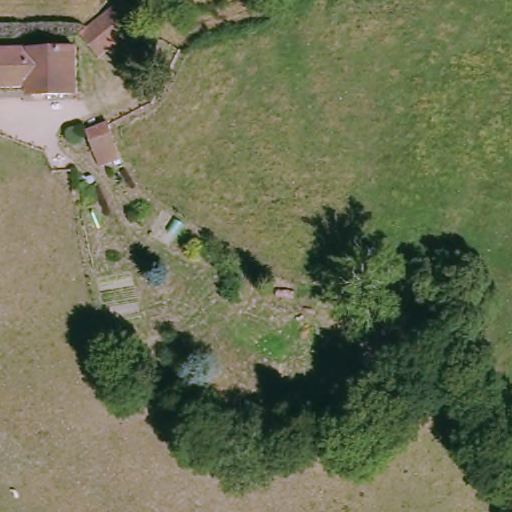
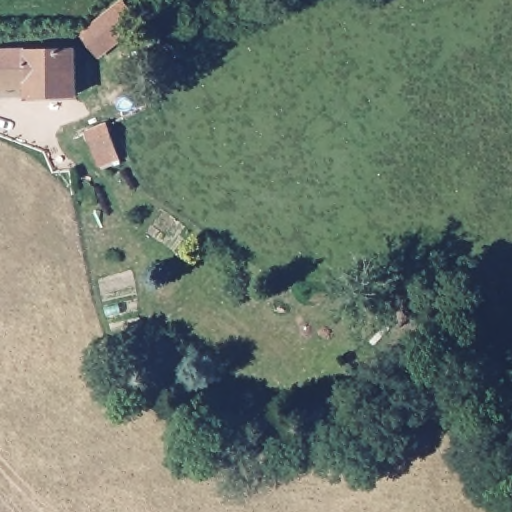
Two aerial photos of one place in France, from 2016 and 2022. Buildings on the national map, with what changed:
unchanged [(140,24),(101,57),(83,37),(123,4),(140,24)]
unchanged [(78,95),(32,94),(32,87),(0,86),(0,47),(78,48),(78,95)]
unchanged [(123,152),(102,160),(88,129),(110,122),(123,152)]

